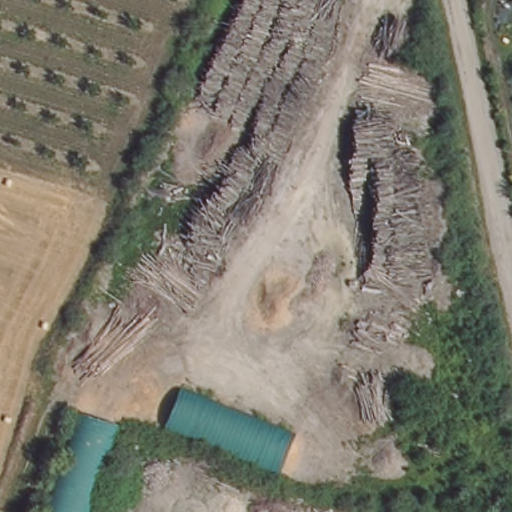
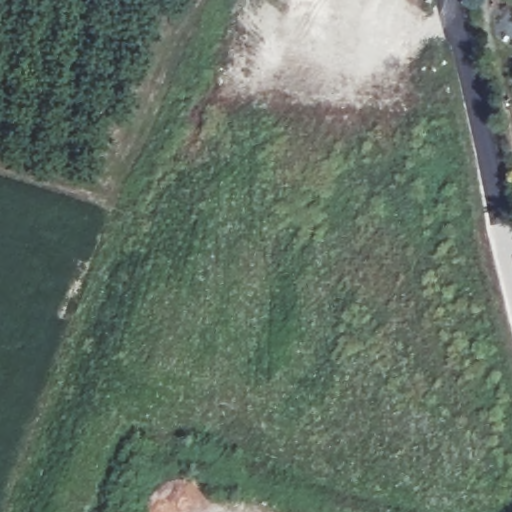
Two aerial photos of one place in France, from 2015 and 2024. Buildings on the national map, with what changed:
demolished [(292,435),(274,474),(165,426),(181,387),(292,435)]
demolished [(122,428),(92,512),(45,512),(81,413),(122,428)]

